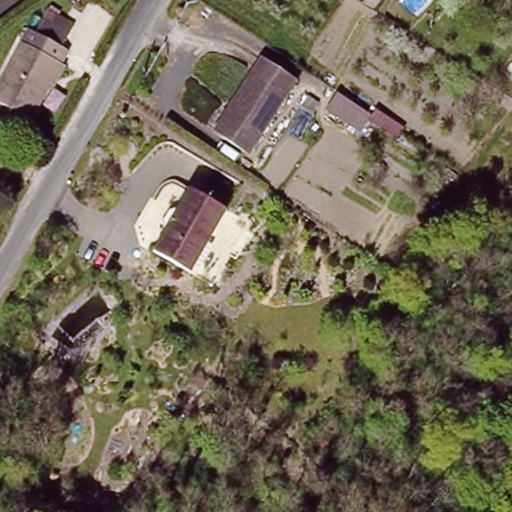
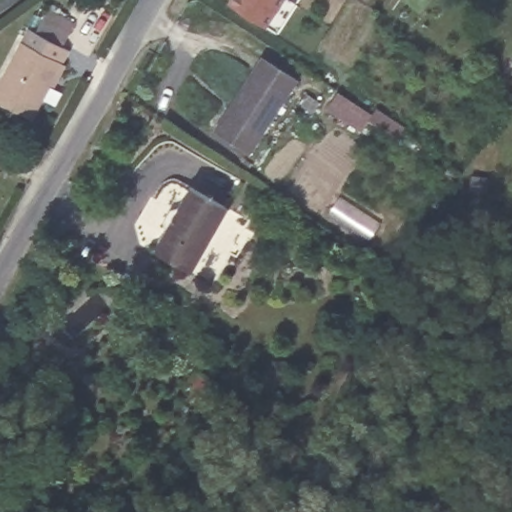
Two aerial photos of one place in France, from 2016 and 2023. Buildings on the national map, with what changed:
new [(283,0),(265,28),(227,2),(228,0),(283,0)]
unchanged [(70,55),(27,123),(0,106),(0,82),(32,32),(70,55)]
unchanged [(297,78),(248,152),(213,128),(262,55),(297,78)]
unchanged [(370,106),(358,125),(335,109),(322,100),(333,83),(345,90),(363,101),(370,106)]
unchanged [(227,210),(190,273),(152,250),(168,226),(163,215),(170,203),(180,203),(190,187),(227,210)]

